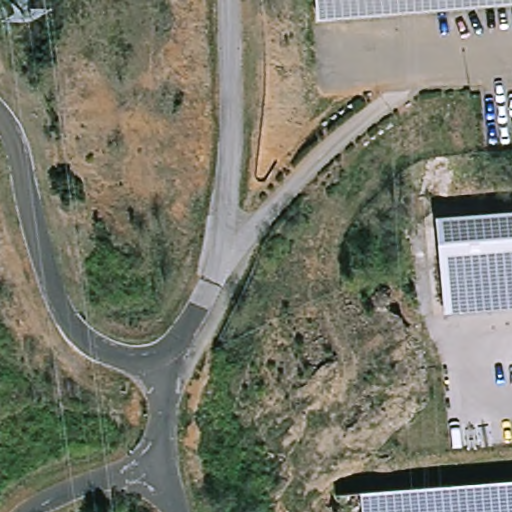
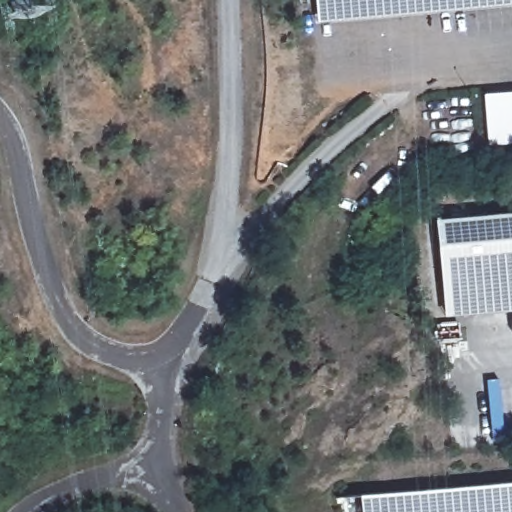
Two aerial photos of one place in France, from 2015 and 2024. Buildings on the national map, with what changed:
unchanged [(389,12),(322,19),(320,0),(436,0),(512,0),(512,3),(437,9),(410,11),(389,12)]
new [(512,92),(512,143),(488,145),(484,94),(512,92)]
unchanged [(512,210),(512,296),(445,302),(437,217),(512,210)]
unchanged [(512,296),(512,311),(446,317),(445,302),(512,296)]
unchanged [(512,481),(512,512),(364,512),(363,495),(509,481),(512,481)]

